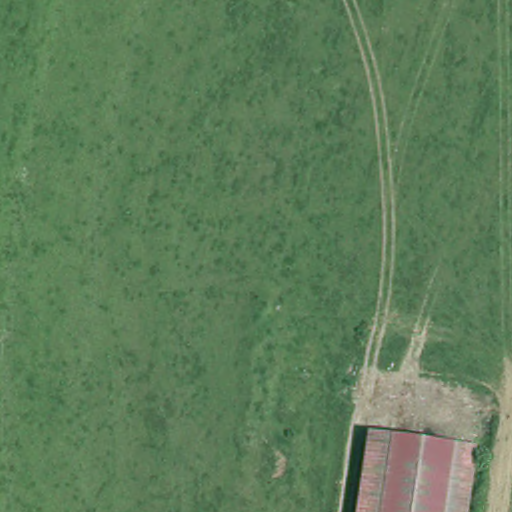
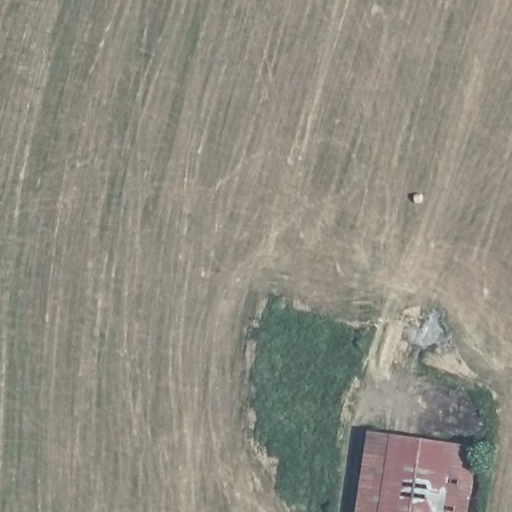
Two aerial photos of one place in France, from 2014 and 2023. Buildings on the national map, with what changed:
unchanged [(363,439),(473,453),(465,512),(354,512),(363,439)]

